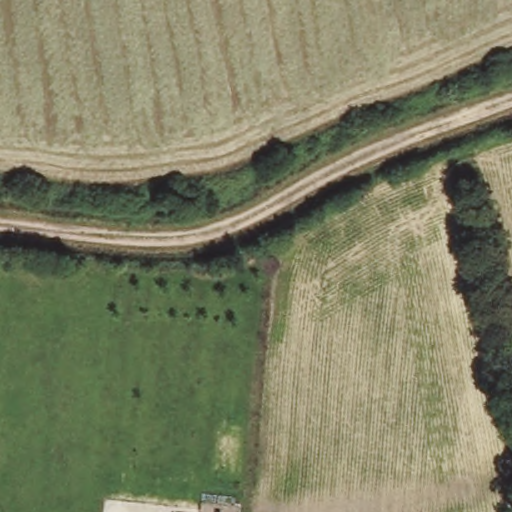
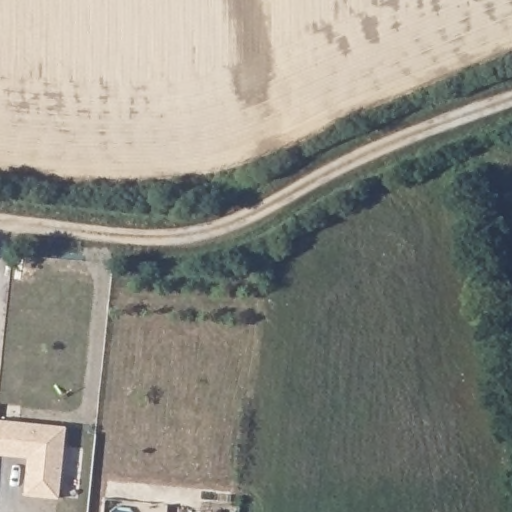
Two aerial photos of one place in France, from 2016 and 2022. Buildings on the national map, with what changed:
new [(60,499),(24,495),(27,457),(0,455),(0,419),(66,426),(60,499)]

